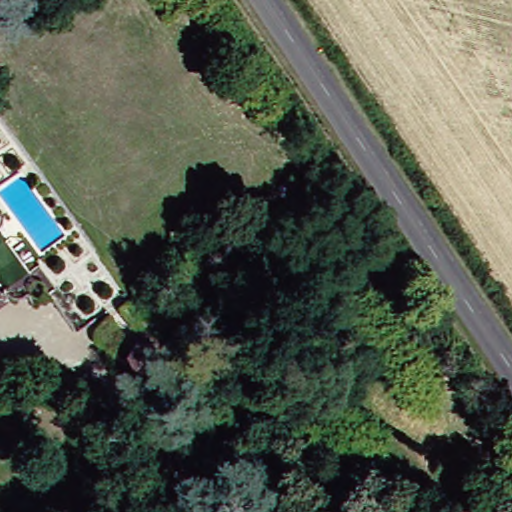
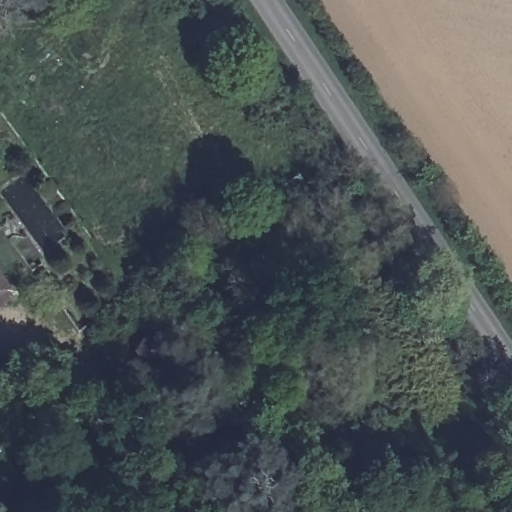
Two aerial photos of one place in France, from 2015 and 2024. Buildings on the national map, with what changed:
unchanged [(0,296),(0,289),(4,294),(0,296)]
unchanged [(166,362),(162,368),(157,371),(150,373),(144,371),(138,368),(135,362),(133,356),(135,350),(138,344),(144,340),(150,339),(157,340),(162,344),(166,350),(167,356),(166,362)]

